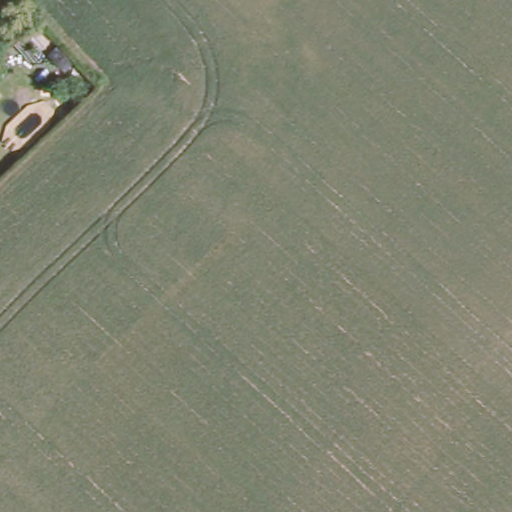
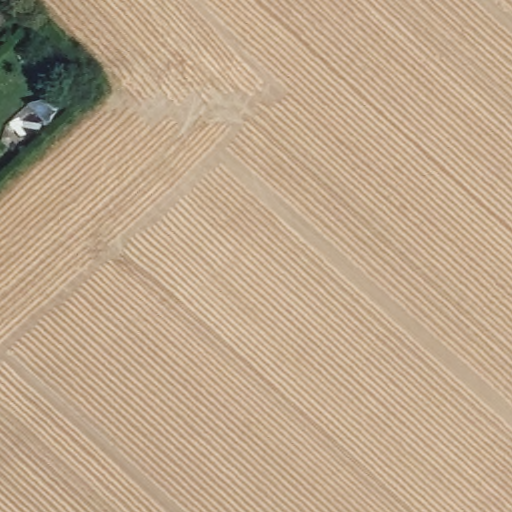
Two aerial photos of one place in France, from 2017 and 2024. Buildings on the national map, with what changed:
unchanged [(2,21),(0,23),(0,18),(2,21)]

